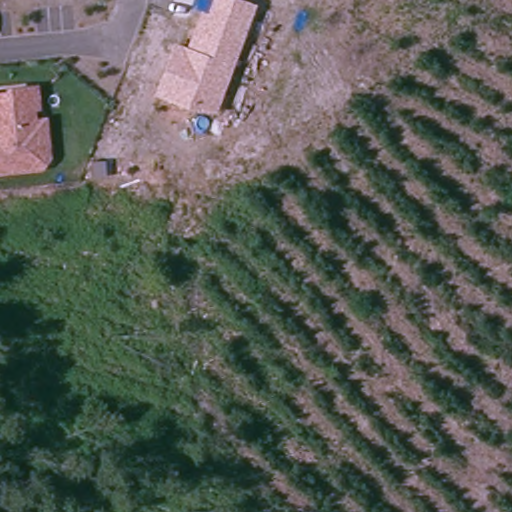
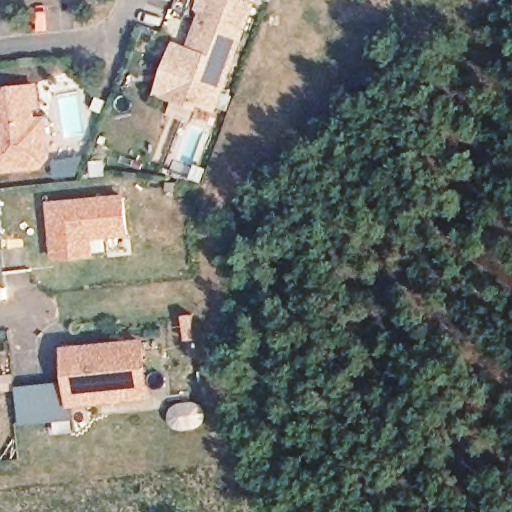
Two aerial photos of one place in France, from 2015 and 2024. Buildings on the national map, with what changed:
unchanged [(215,114),(154,95),(171,39),(187,45),(201,9),(206,12),(211,0),(243,0),(257,5),(215,114)]
unchanged [(30,167),(0,170),(0,92),(9,91),(9,87),(35,85),(37,106),(32,106),(33,118),(45,117),(46,136),(49,155),(40,166),(30,167)]
new [(130,236),(94,240),(96,260),(55,264),(47,203),(127,194),(130,236)]
new [(154,402),(73,408),(74,422),(20,426),(17,387),(66,381),(64,348),(146,340),(154,402)]

